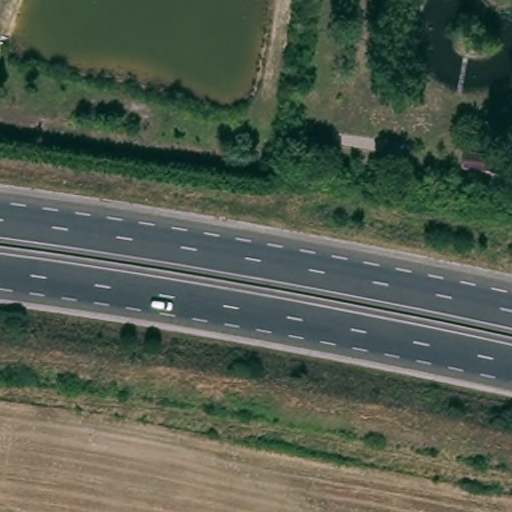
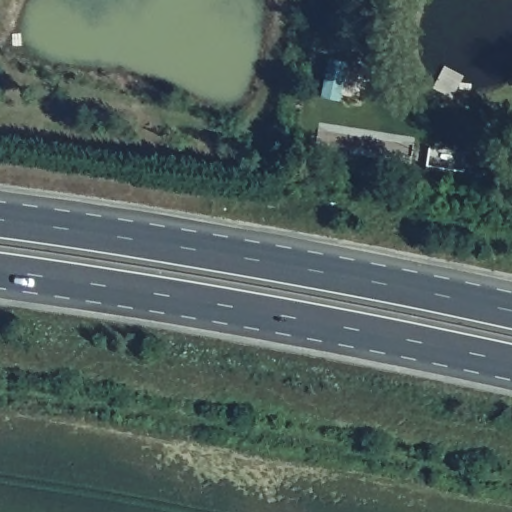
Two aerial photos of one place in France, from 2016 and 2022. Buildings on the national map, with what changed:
unchanged [(503,156),(501,172),(469,167),(471,151),(482,153),(503,156)]

